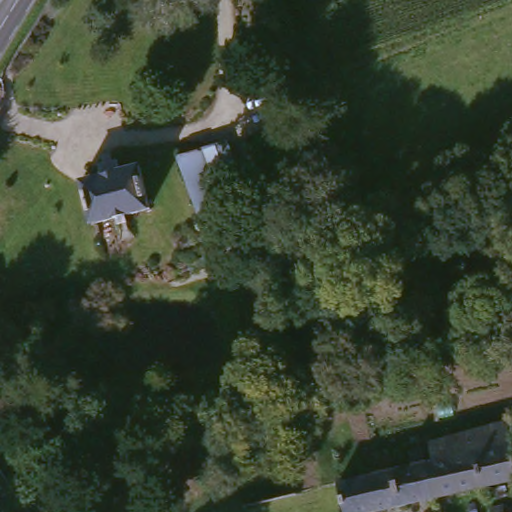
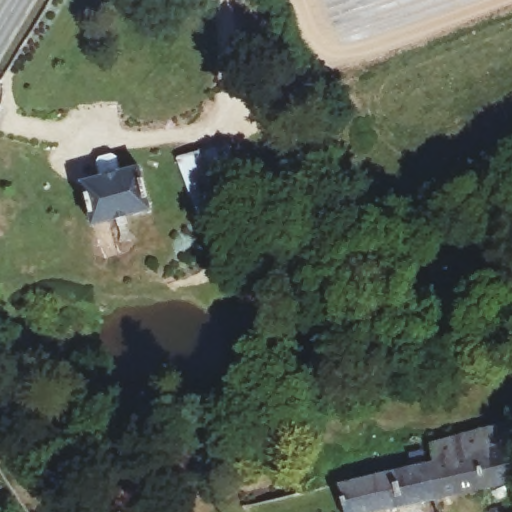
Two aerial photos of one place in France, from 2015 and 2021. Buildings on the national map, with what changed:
unchanged [(230,208),(220,213),(202,222),(180,160),(225,144),(240,188),(229,194),(230,196),(225,199),(230,208)]
unchanged [(121,157),(128,156),(130,165),(147,161),(158,206),(137,210),(143,236),(128,239),(122,214),(99,219),(89,176),(109,171),(107,161),(112,160),(110,152),(120,150),(121,157)]
unchanged [(449,495),(440,457),(448,454),(443,436),(512,420),(512,481),(449,495)]
unchanged [(449,495),(371,512),(361,512),(352,477),(425,460),(422,450),(436,446),(440,457),(449,495)]
unchanged [(255,501),(252,488),(286,480),(289,493),(255,501)]
unchanged [(502,512),(500,506),(512,502),(512,512),(502,512)]

